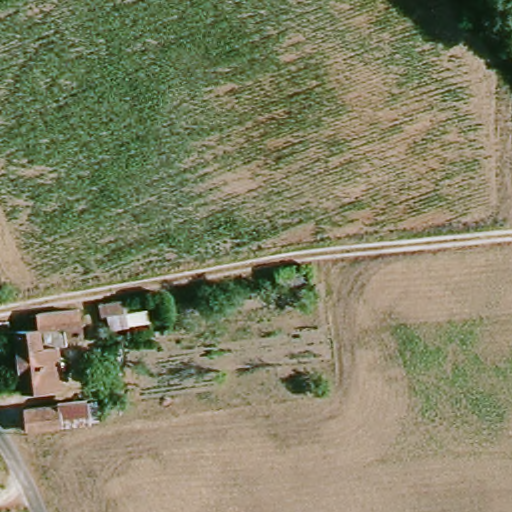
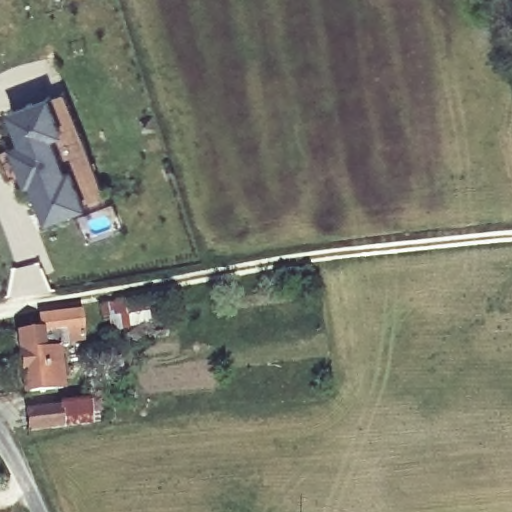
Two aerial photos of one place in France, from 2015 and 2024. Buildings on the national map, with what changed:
new [(68,92),(107,201),(82,210),(68,173),(63,175),(50,138),(60,134),(49,100),(68,92)]
new [(21,177),(12,150),(22,146),(10,114),(49,100),(60,134),(50,138),(63,175),(68,173),(82,210),(43,224),(30,185),(25,186),(21,177)]
unchanged [(69,352),(62,353),(57,344),(55,330),(62,328),(62,321),(50,323),(50,328),(45,329),(45,335),(37,336),(35,319),(72,312),(74,319),(77,341),(67,341),(69,352)]
unchanged [(17,338),(37,336),(38,350),(50,348),(56,393),(32,395),(25,396),(25,387),(17,338)]
unchanged [(90,427),(24,436),(22,413),(56,405),(85,402),(96,403),(100,426),(90,427)]

